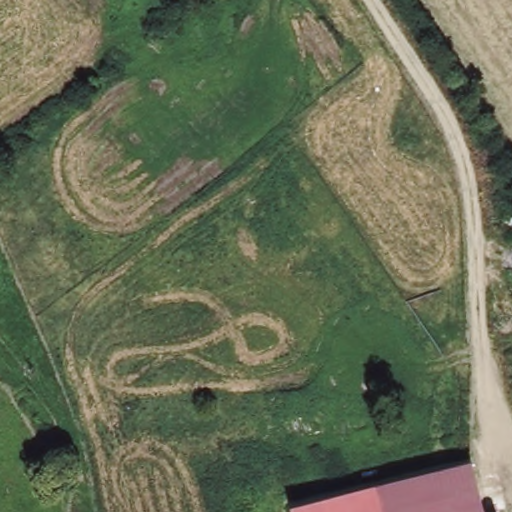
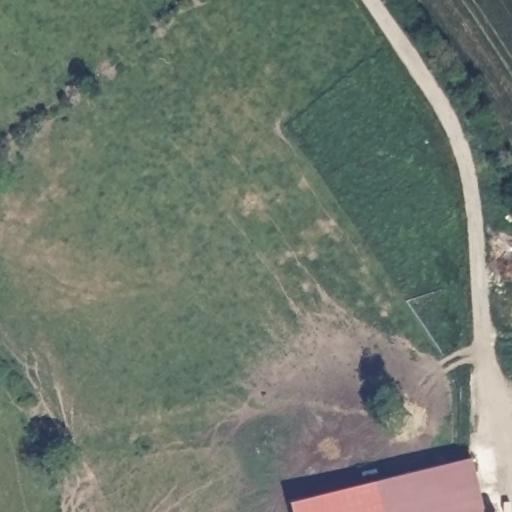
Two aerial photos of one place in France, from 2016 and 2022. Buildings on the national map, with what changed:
unchanged [(481,512),(292,512),(291,506),(469,462),(481,512)]

